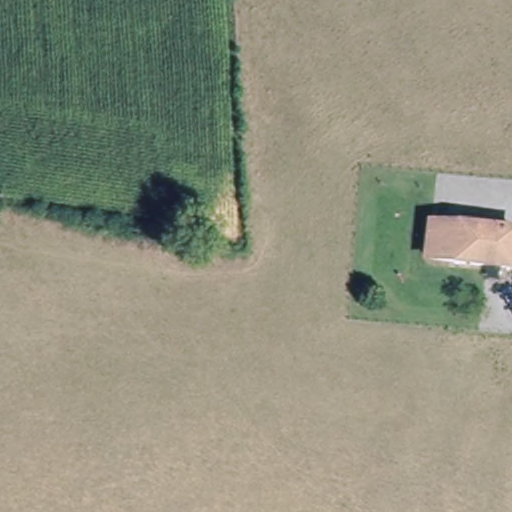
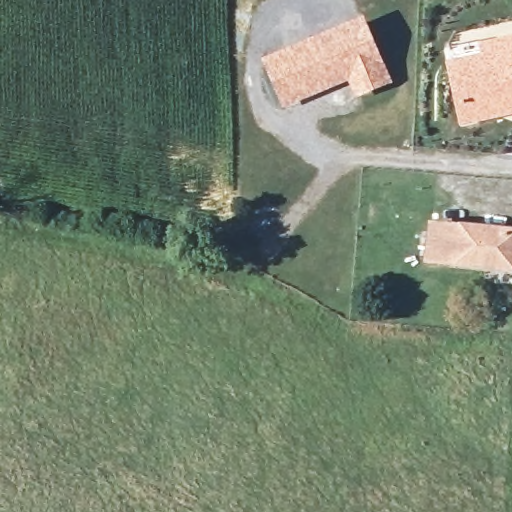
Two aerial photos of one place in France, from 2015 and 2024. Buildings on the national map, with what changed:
new [(392,82),(355,98),(348,80),(284,107),(262,59),(365,16),(392,82)]
new [(512,35),(512,114),(460,126),(446,62),(481,53),(480,42),(512,35)]
unchanged [(425,258),(428,224),(512,233),(512,250),(510,266),(458,261),(425,258)]

